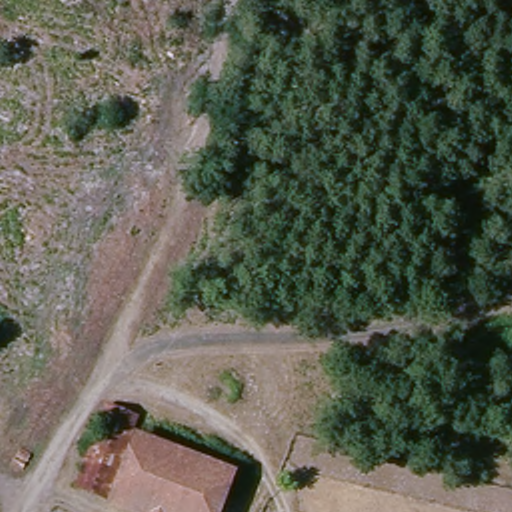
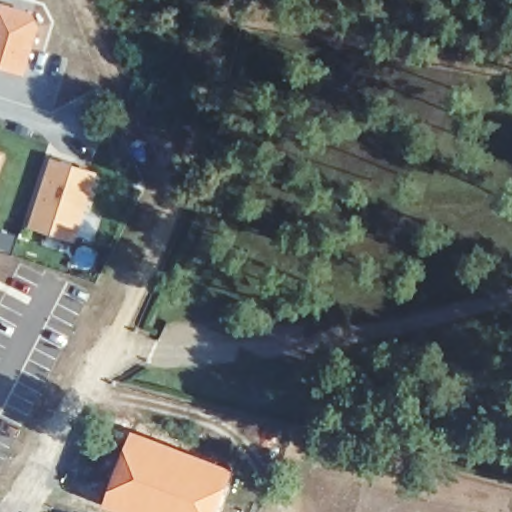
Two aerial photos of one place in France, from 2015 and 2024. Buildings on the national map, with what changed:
new [(34,14),(41,26),(26,76),(0,69),(0,3),(34,14)]
new [(5,154),(0,172),(0,152),(5,154)]
new [(99,172),(77,244),(29,230),(51,157),(99,172)]
unchanged [(226,465),(216,487),(206,512),(155,512),(106,493),(112,480),(131,429),(226,465)]

